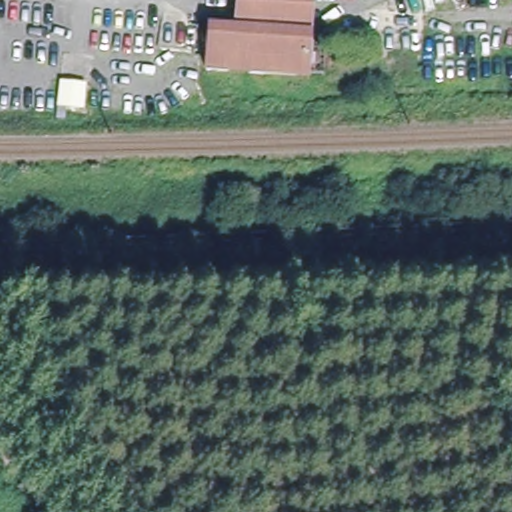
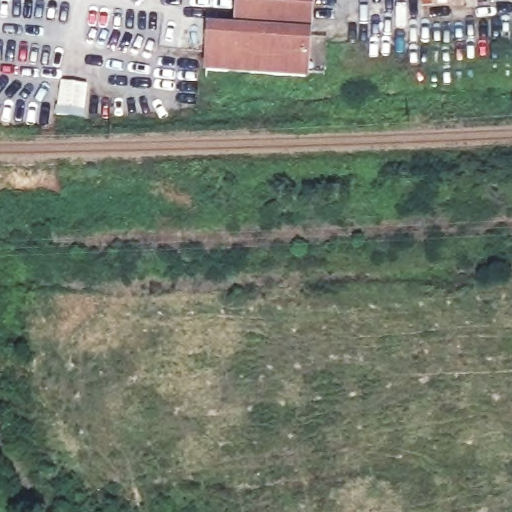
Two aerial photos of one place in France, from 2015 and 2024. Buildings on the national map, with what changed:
unchanged [(244,0),(312,0),(308,36),(242,29),(244,0)]
unchanged [(305,78),(207,68),(212,26),(242,29),(308,36),(305,78)]

